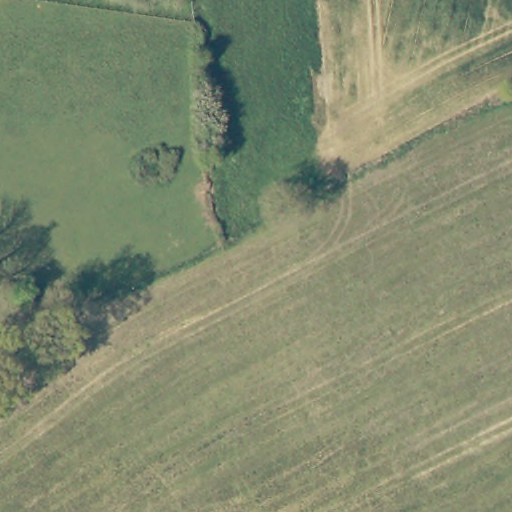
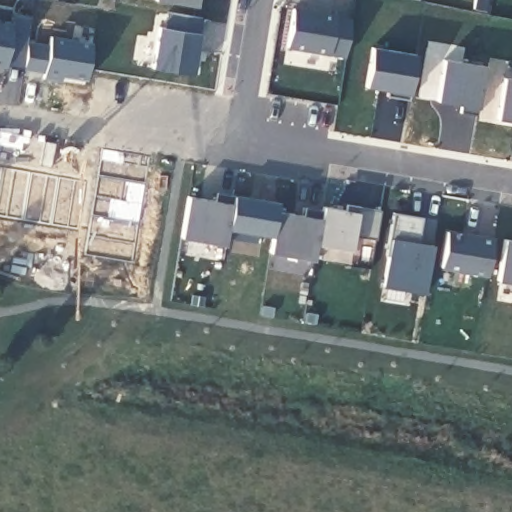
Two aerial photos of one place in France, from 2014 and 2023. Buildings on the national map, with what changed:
new [(199,6),(160,0),(200,0),(199,6)]
new [(346,58),(288,47),(295,7),(336,13),(352,18),(346,58)]
new [(201,33),(195,75),(152,67),(160,27),(165,27),(168,13),(203,18),(201,33)]
new [(15,23),(8,66),(0,65),(0,21),(15,23)]
new [(94,44),(87,81),(64,76),(62,81),(45,79),(45,74),(25,70),(30,43),(50,47),(52,37),(94,44)]
new [(411,95),(410,100),(388,96),(388,91),(366,87),(373,47),(417,54),(411,95)]
new [(487,68),(479,117),(462,114),(463,106),(438,102),(445,61),(487,68)]
new [(505,78),(512,80),(512,121),(496,118),(505,78)]
new [(378,240),(355,237),(353,251),(317,244),(315,260),(271,253),(274,237),(257,235),(258,242),(226,239),(225,246),(182,239),(190,196),(235,204),(235,194),(280,201),(278,211),(322,219),(325,206),(346,209),(350,205),(382,211),(378,240)]
new [(421,242),(435,244),(426,294),(383,287),(393,238),(395,213),(424,217),(421,242)]
new [(490,276),(442,269),(448,229),(493,238),(490,276)]
new [(506,241),(512,242),(512,284),(499,282),(506,241)]

